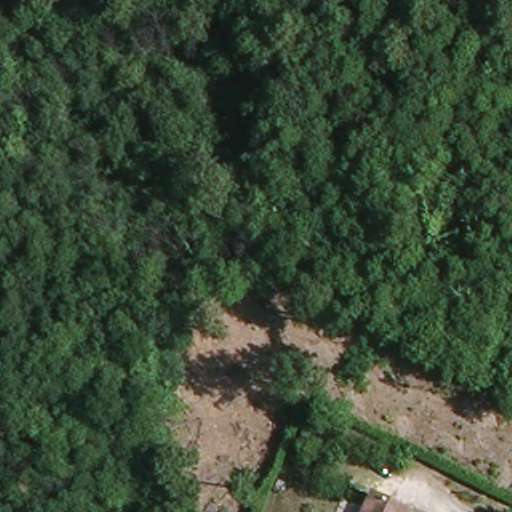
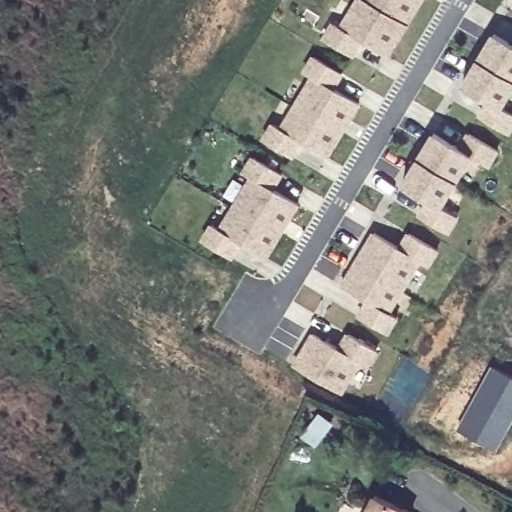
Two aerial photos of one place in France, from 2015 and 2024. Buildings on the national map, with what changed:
new [(363,42),(354,56),(321,38),(330,21),(338,25),(354,0),(421,0),(388,59),(363,42)]
new [(512,44),(512,91),(500,110),(512,116),(512,130),(508,136),(475,116),(483,102),(459,86),(490,34),(511,45),(512,44)]
new [(327,159),(303,144),(294,157),(261,139),(270,123),(277,127),(308,75),(300,72),(311,55),(343,75),(335,90),(358,104),(327,159)]
new [(452,145),(464,133),(498,154),(489,169),(469,159),(441,210),(457,220),(448,236),(414,217),(424,201),(398,186),(430,133),(452,145)]
new [(266,260),(242,245),(232,258),(201,240),(210,224),(217,229),(248,175),(241,172),(250,156),(282,176),(273,191),(298,205),(266,260)]
new [(395,247),(404,234),(438,252),(429,270),(418,265),(390,316),(398,320),(388,337),(354,317),(364,302),(337,286),(370,233),(395,247)]
new [(368,370),(360,365),(343,396),(290,366),(308,334),(335,349),(343,335),(377,353),(368,370)]
new [(512,375),(512,420),(494,451),(456,429),(491,363),(512,375)]
unchanged [(385,495),(418,512),(377,512),(385,495)]

